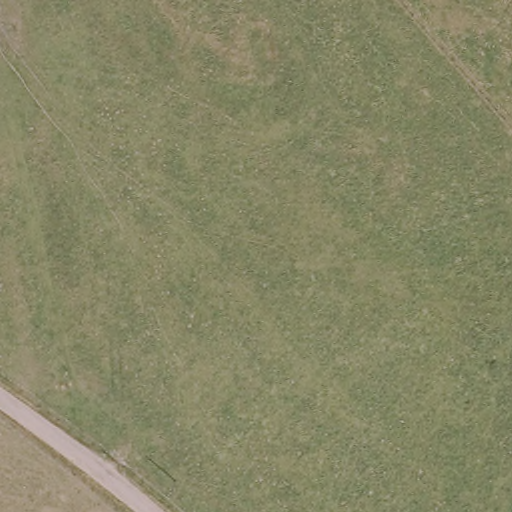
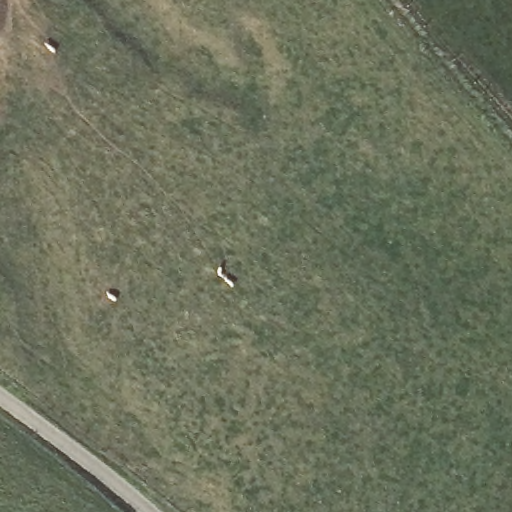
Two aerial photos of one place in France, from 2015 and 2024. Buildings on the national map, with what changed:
[]

